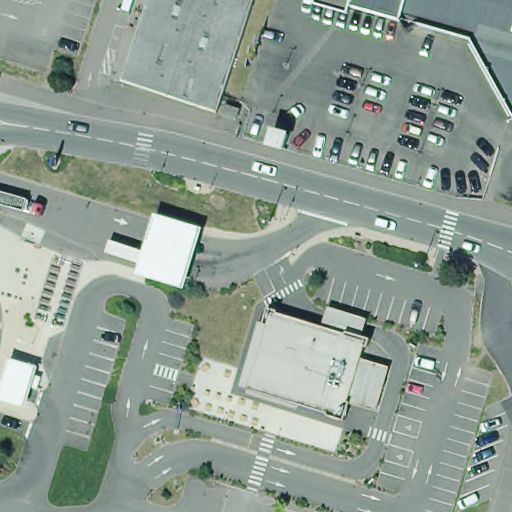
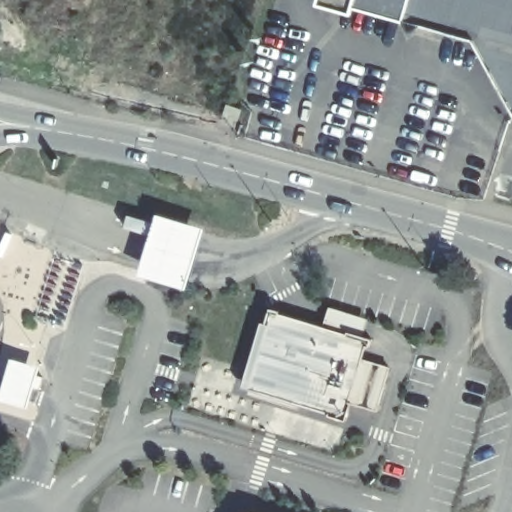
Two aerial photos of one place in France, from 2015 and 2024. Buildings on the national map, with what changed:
demolished [(247,27),(219,112),(123,82),(150,0),(166,0),(247,27)]
demolished [(247,27),(166,0),(255,0),(247,27)]
unchanged [(475,41),(353,5),(351,16),(318,6),(319,0),(512,0),(512,111),(475,41)]
demolished [(272,144),(276,129),(290,133),(285,147),(272,144)]
unchanged [(112,241),(145,251),(156,215),(203,229),(185,289),(138,275),(142,264),(107,252),(112,241)]
unchanged [(300,408),(248,392),(272,316),(323,332),(300,408)]
unchanged [(345,422),(300,408),(323,332),(368,345),(345,422)]
unchanged [(0,400),(0,398),(11,360),(39,368),(27,407),(0,400)]

